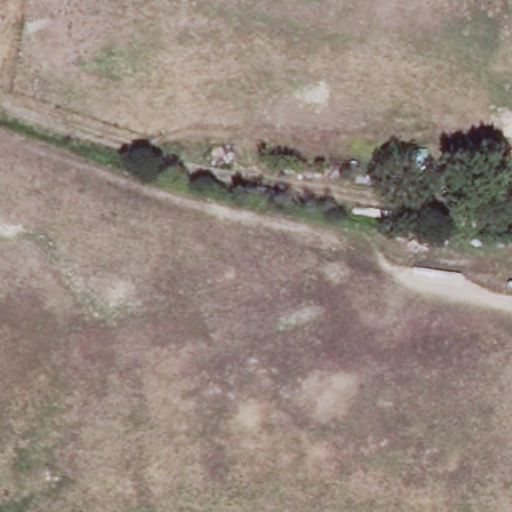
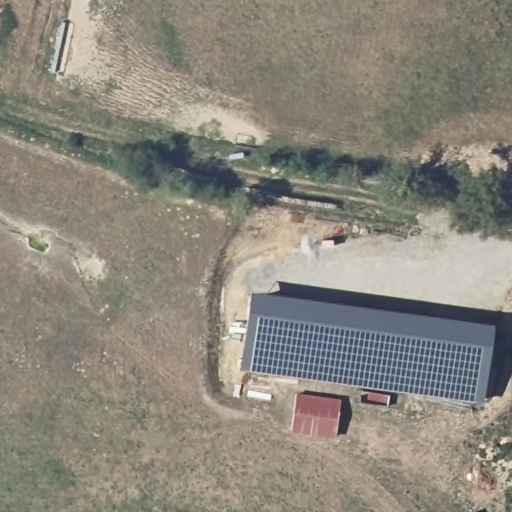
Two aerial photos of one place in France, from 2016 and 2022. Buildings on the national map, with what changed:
new [(256,297),(494,326),(494,333),(255,305),(256,297)]
new [(255,305),(494,333),(486,401),(247,373),(255,305)]

